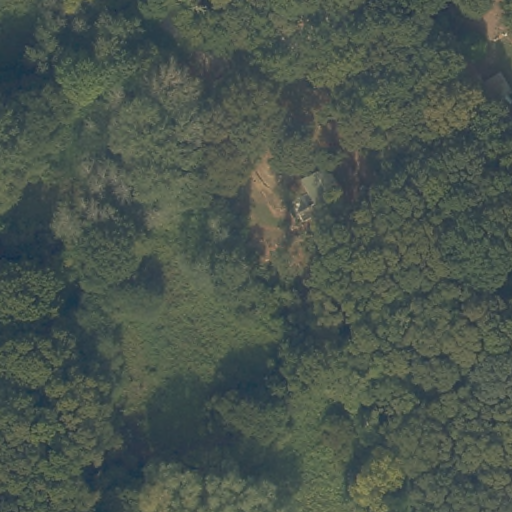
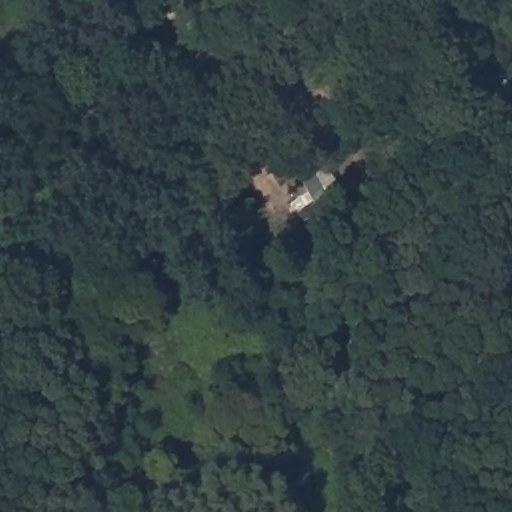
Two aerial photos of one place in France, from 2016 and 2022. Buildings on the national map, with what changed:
unchanged [(466,44),(484,76),(502,72),(511,88),(481,102),(451,49),(466,44)]

